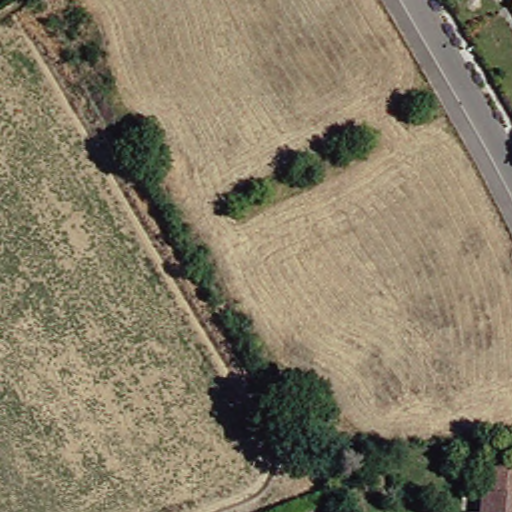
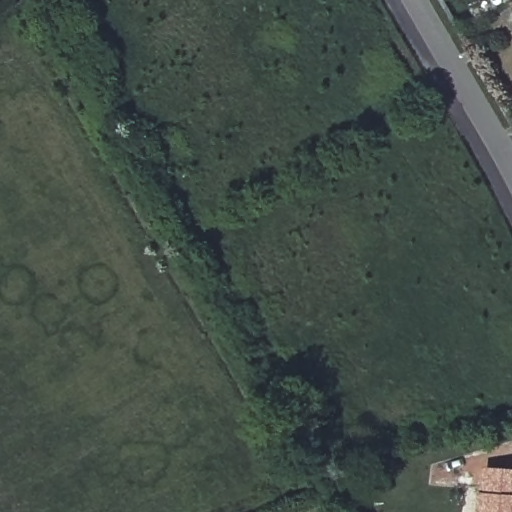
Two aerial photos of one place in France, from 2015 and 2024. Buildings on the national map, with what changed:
unchanged [(485,478),(512,480),(512,507),(482,505),(485,478)]
unchanged [(482,505),(512,507),(512,512),(481,512),(482,505)]

